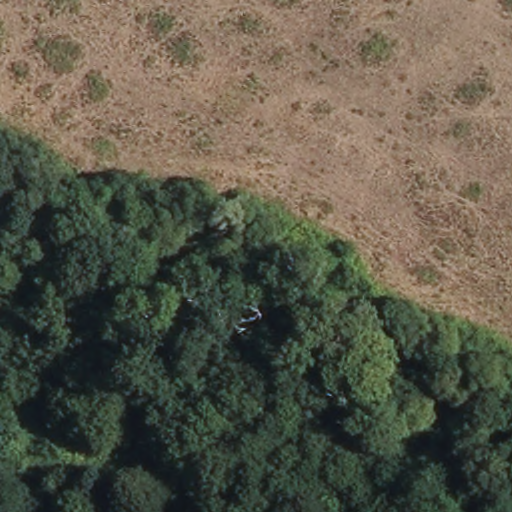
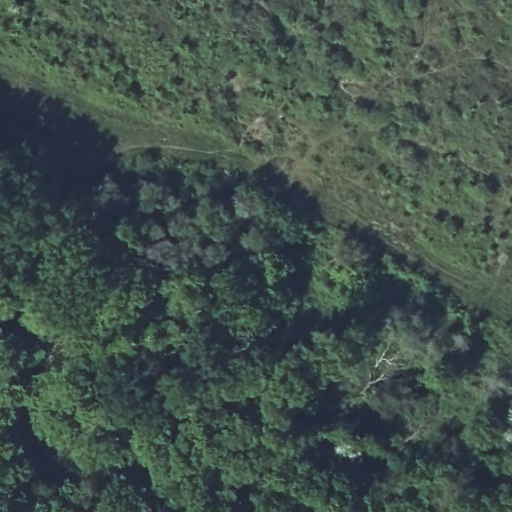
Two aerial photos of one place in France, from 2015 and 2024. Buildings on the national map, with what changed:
[]

